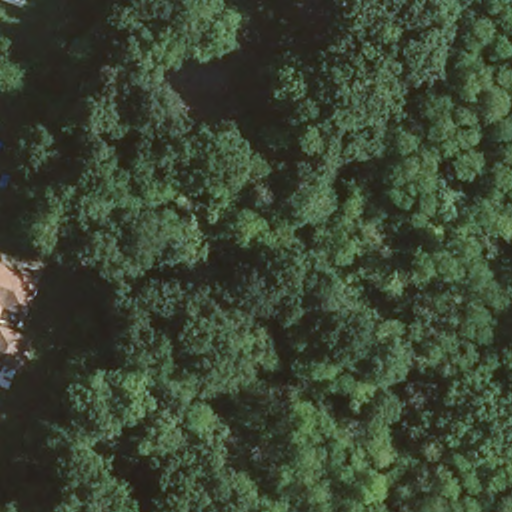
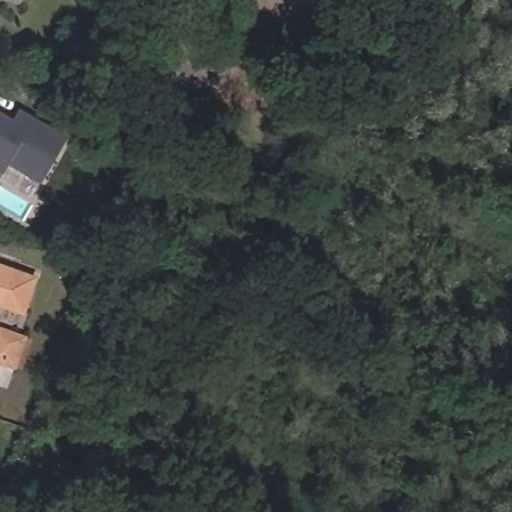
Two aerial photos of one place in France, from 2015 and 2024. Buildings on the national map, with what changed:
new [(27,176),(19,190),(0,179),(0,177),(3,172),(0,170),(0,111),(12,118),(19,108),(66,135),(37,183),(27,176)]
unchanged [(20,268),(9,303),(0,300),(0,261),(20,268)]
unchanged [(12,324),(3,351),(0,350),(0,320),(12,324)]

